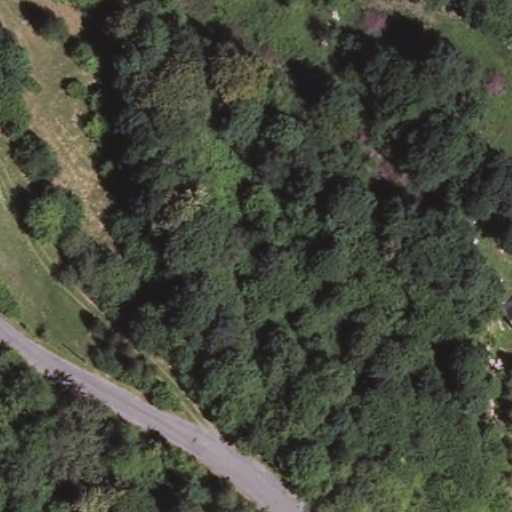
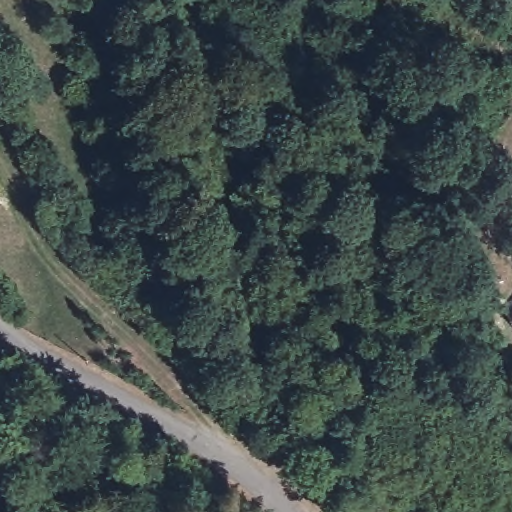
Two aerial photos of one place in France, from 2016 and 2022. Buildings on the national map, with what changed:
unchanged [(512,294),(512,323),(498,304),(512,294)]

